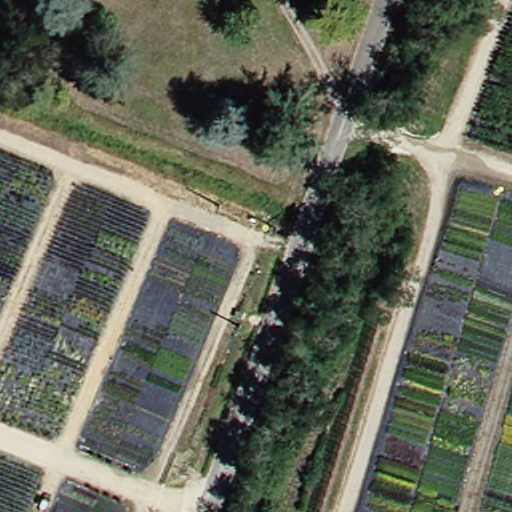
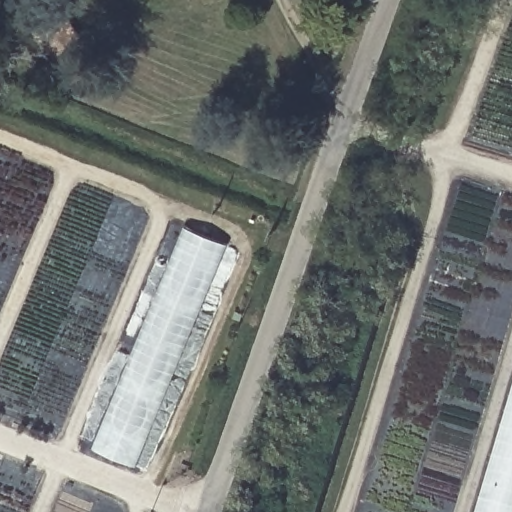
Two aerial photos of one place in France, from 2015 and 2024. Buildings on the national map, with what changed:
new [(225,244),(133,466),(91,447),(183,225),(225,244)]
new [(512,512),(477,512),(512,389),(512,512)]

